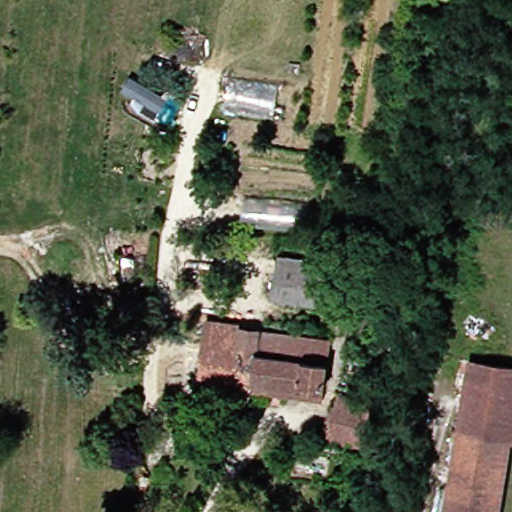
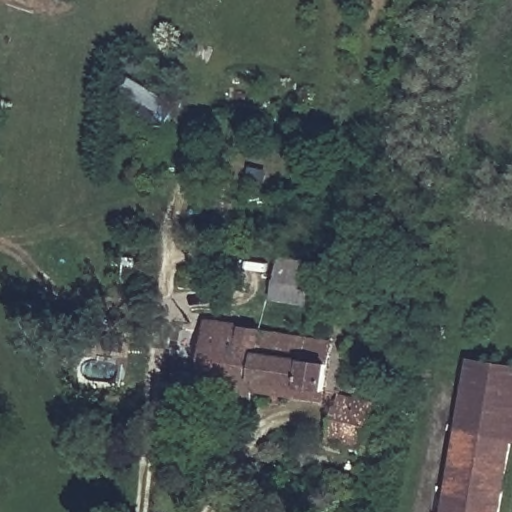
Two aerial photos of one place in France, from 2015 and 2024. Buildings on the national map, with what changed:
unchanged [(336,267),(327,307),(282,299),(289,258),(336,267)]
unchanged [(328,397),(256,387),(254,396),(253,404),(202,397),(210,330),(335,346),(328,397)]
unchanged [(512,471),(505,512),(450,512),(463,428),(475,362),(512,368),(512,471)]
unchanged [(371,405),(368,413),(380,416),(373,443),(362,440),(359,451),(326,442),(338,396),(371,405)]

